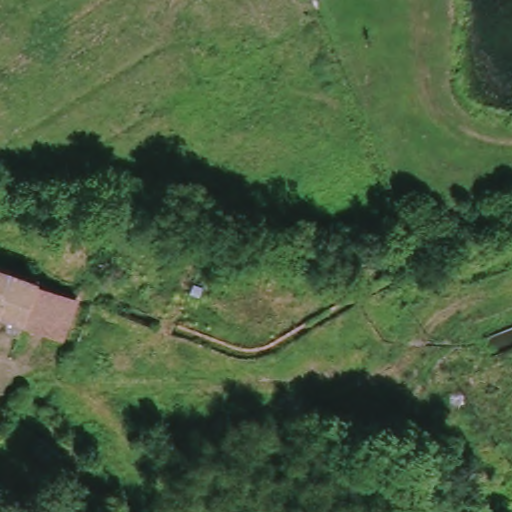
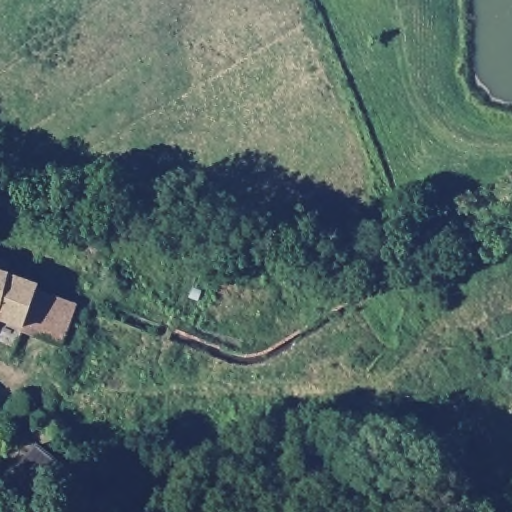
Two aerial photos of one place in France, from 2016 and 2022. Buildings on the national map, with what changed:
unchanged [(60,343),(20,332),(15,346),(0,340),(0,271),(37,285),(35,287),(75,302),(60,343)]
unchanged [(140,449),(140,436),(155,435),(155,447),(140,449)]
unchanged [(85,507),(88,512),(79,512),(85,507)]

